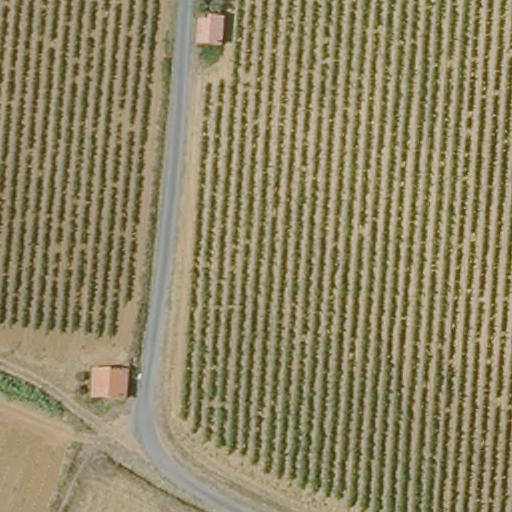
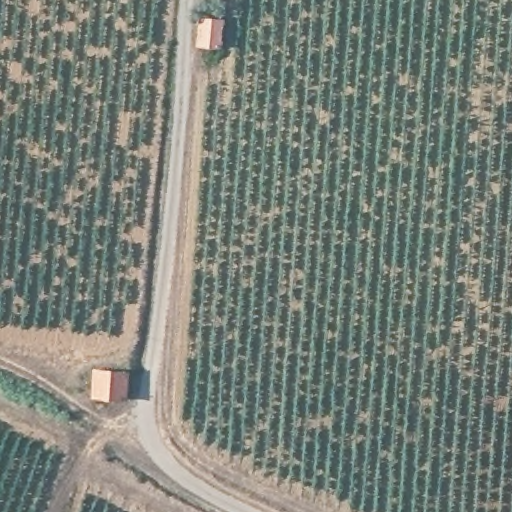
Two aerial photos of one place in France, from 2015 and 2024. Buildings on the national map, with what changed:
unchanged [(221,22),(220,48),(201,47),(203,21),(221,22)]
unchanged [(130,365),(126,390),(103,389),(105,363),(130,365)]

